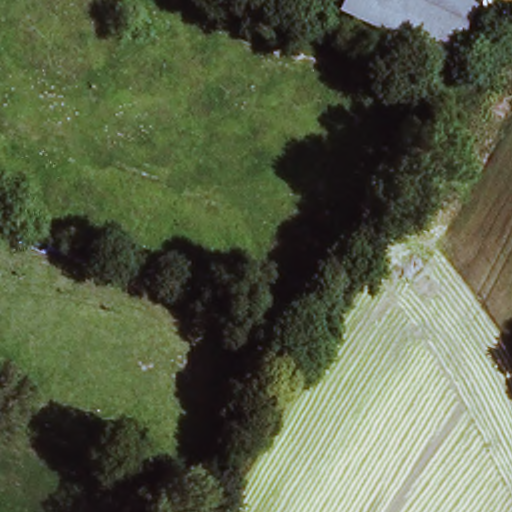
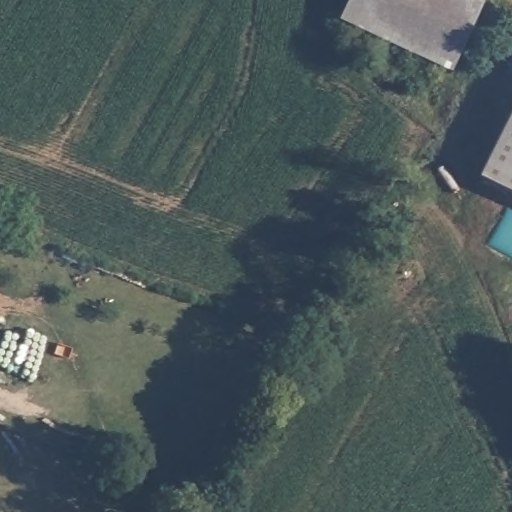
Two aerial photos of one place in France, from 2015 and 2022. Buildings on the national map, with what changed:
unchanged [(449,66),(339,14),(346,0),(481,0),(449,66)]
new [(512,112),(512,193),(480,176),(512,112)]

